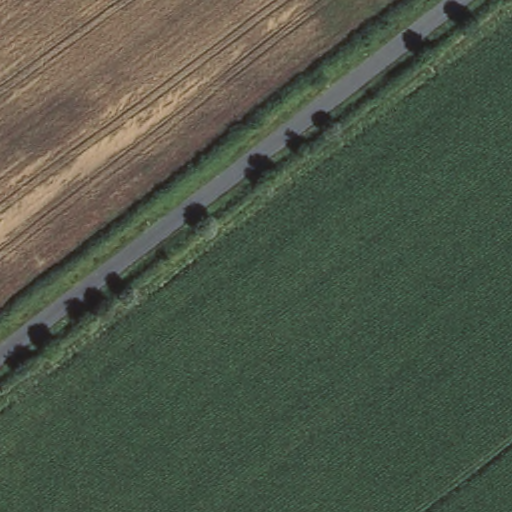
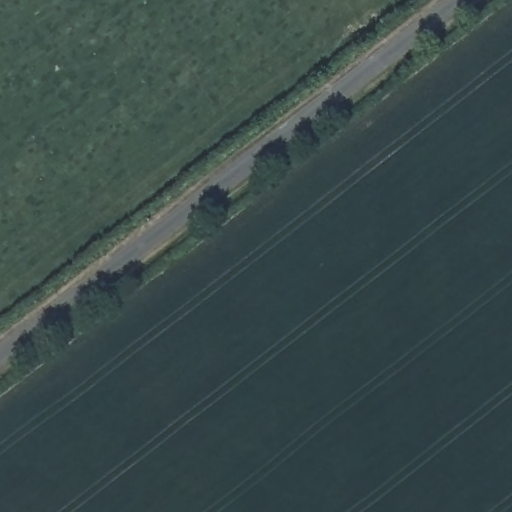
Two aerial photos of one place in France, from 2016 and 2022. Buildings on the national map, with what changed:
[]

